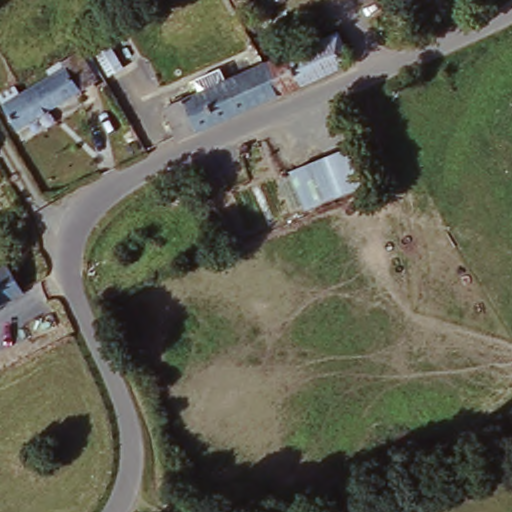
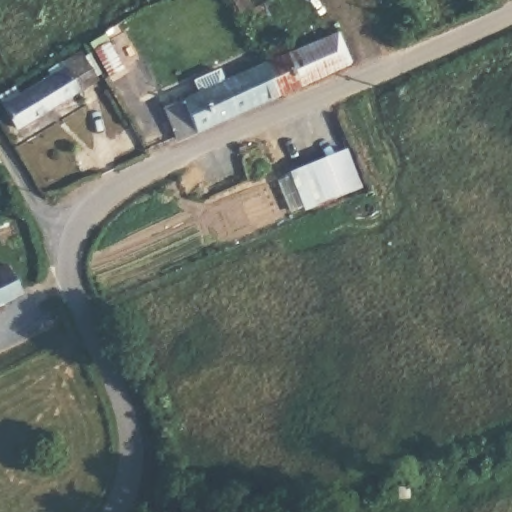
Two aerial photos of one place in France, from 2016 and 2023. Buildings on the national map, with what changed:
unchanged [(263,64),(275,59),(271,50),(290,41),(293,50),(336,32),(350,61),(279,93),(263,64)]
unchanged [(20,94),(68,66),(65,61),(82,51),(98,79),(81,89),(17,126),(0,98),(0,97),(15,86),(20,94)]
unchanged [(199,92),(192,79),(208,71),(215,85),(263,64),(279,93),(179,139),(163,107),(199,92)]
unchanged [(345,152),(361,190),(308,213),(292,175),(345,152)]
unchanged [(3,263),(19,292),(0,302),(0,265),(3,263)]

